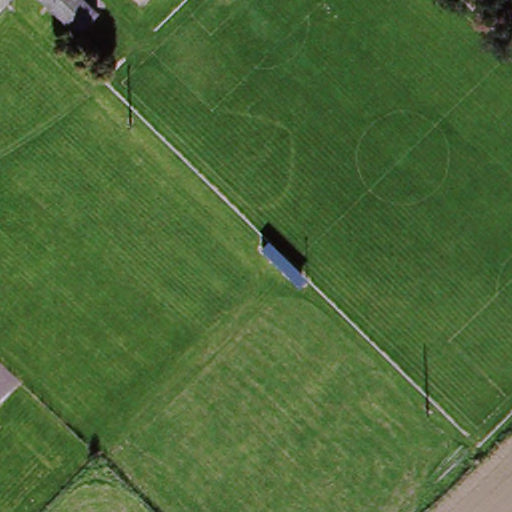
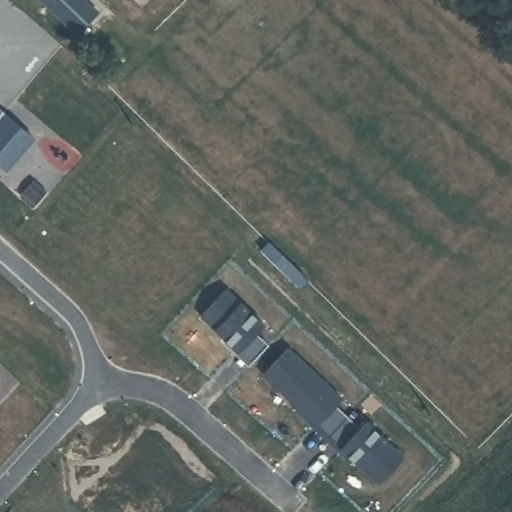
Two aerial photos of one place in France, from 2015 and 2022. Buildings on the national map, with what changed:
unchanged [(101,15),(81,35),(45,0),(86,0),(101,15)]
new [(31,134),(2,167),(0,165),(0,107),(31,134)]
unchanged [(265,235),(309,278),(297,291),(254,249),(265,235)]
new [(237,350),(201,315),(226,289),(262,324),(237,350)]
new [(316,424),(264,373),(288,348),(340,398),(316,424)]
new [(378,482),(340,446),(365,421),(401,456),(378,482)]

